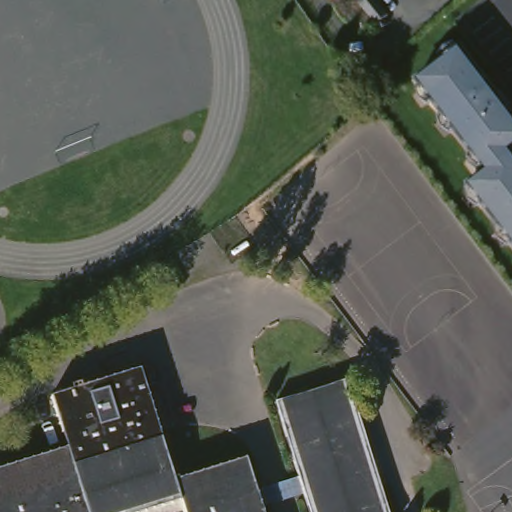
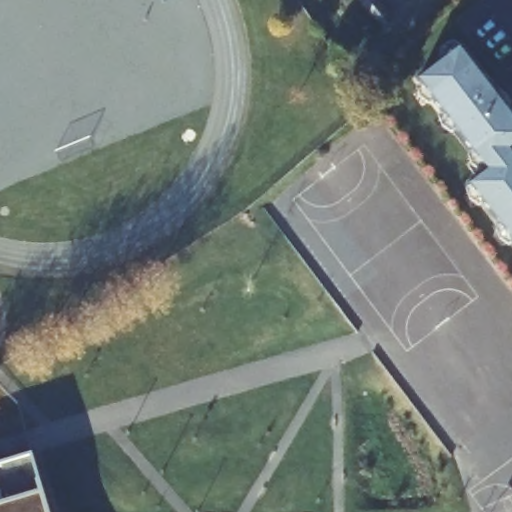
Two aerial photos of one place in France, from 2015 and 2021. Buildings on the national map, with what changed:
unchanged [(393,15),(382,24),(363,0),(382,0),(393,15)]
unchanged [(512,236),(472,182),(491,169),(422,77),(466,44),(512,105),(512,236)]
demolished [(148,512),(0,512),(0,471),(72,448),(57,397),(145,370),(178,480),(250,458),(266,512),(189,512),(186,500),(148,512)]
demolished [(353,380),(393,512),(314,512),(281,402),(353,380)]
new [(31,455),(49,512),(0,512),(0,464),(31,455)]

